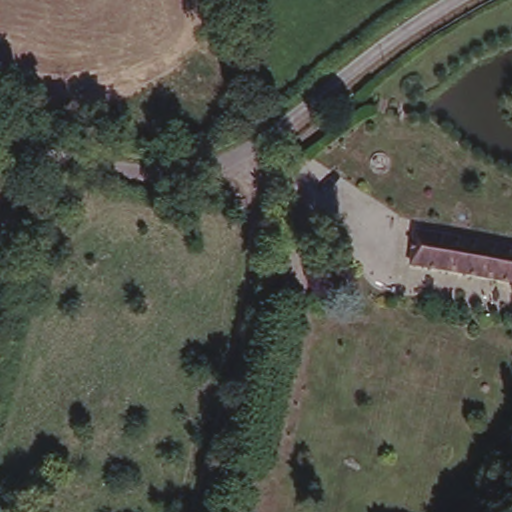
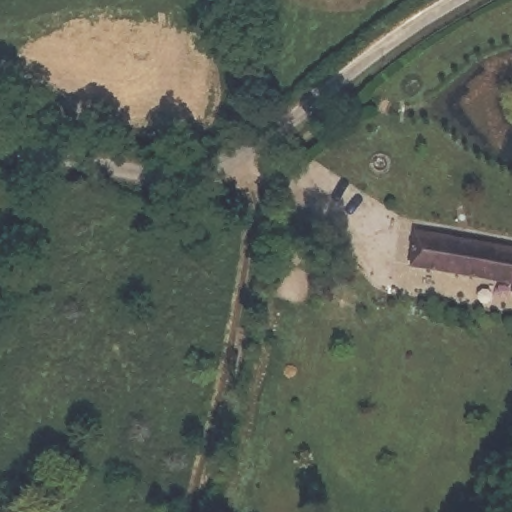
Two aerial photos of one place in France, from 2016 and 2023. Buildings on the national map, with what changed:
unchanged [(512,274),(414,259),(418,231),(512,245),(512,274)]

